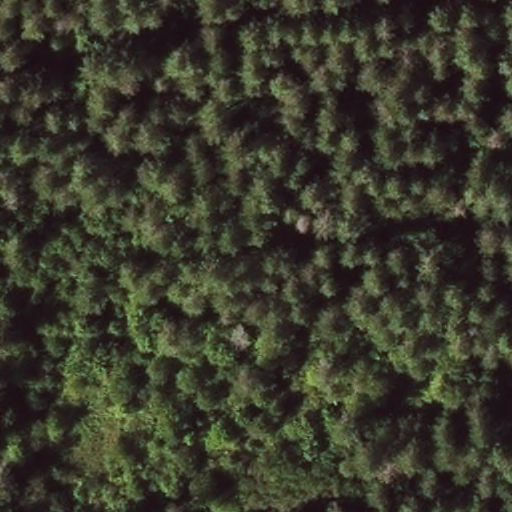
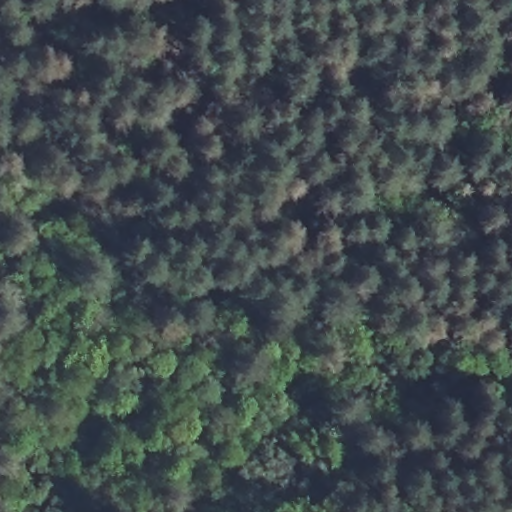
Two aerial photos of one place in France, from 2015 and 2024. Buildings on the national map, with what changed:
[]

